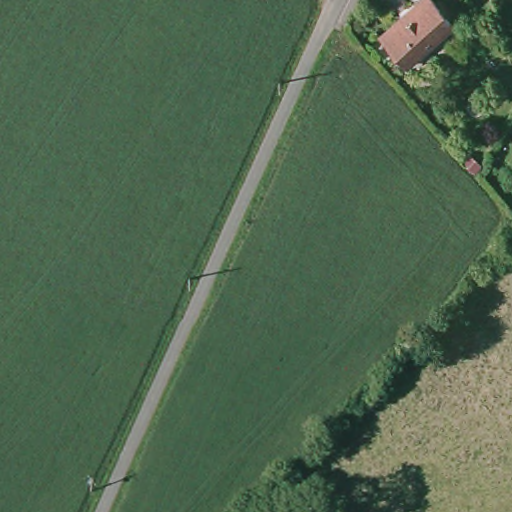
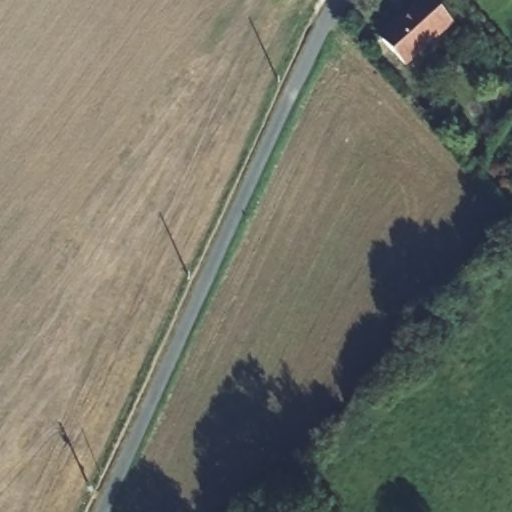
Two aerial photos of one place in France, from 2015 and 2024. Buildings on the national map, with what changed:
unchanged [(383,39),(427,0),(435,0),(453,21),(405,64),(383,39)]

